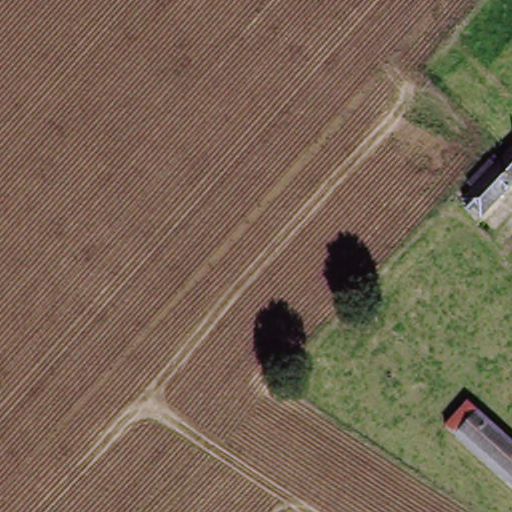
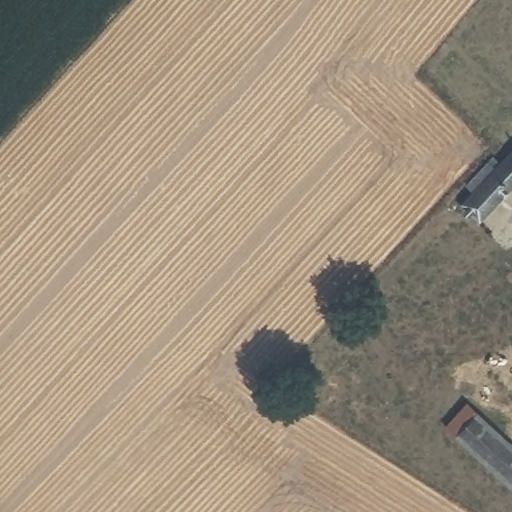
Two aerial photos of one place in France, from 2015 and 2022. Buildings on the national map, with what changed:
unchanged [(457,200),(472,185),(461,175),(480,155),(490,165),(512,141),(512,183),(478,219),(457,200)]
unchanged [(454,441),(443,432),(464,408),(475,416),(477,415),(512,443),(512,489),(452,443),(454,441)]

